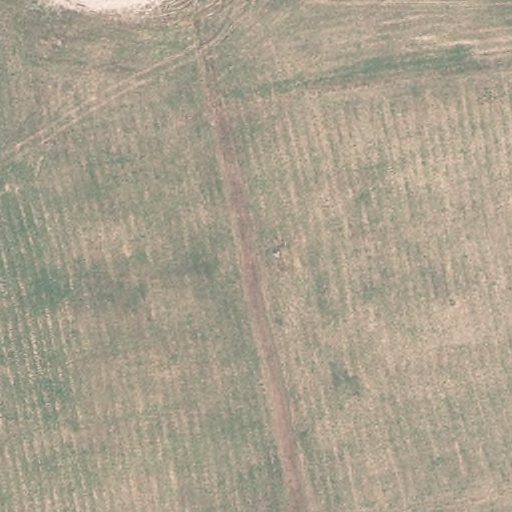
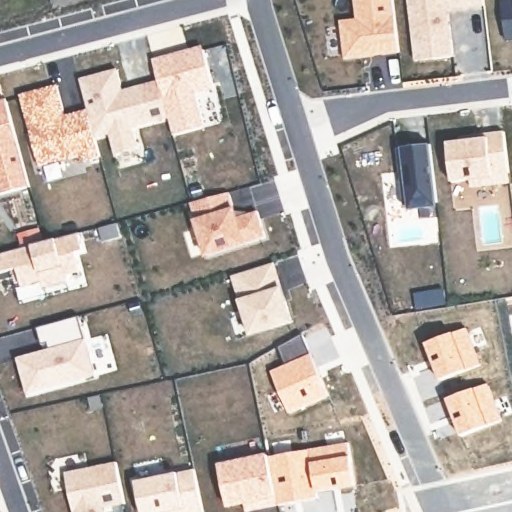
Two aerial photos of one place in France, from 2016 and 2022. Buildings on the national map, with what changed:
new [(353,18),(351,0),(390,0),(396,52),(380,54),(379,50),(371,51),(371,55),(342,58),(337,20),(353,18)]
new [(411,44),(406,0),(481,0),(481,3),(463,5),(445,7),(447,24),(450,54),(430,56),(412,59),(411,44)]
new [(503,37),(499,0),(512,0),(512,36),(503,37)]
new [(166,53),(167,57),(200,48),(210,86),(191,91),(201,126),(170,134),(165,116),(155,79),(150,58),(166,53)]
new [(119,89),(135,85),(155,79),(165,116),(129,126),(135,147),(111,153),(106,132),(91,136),(84,109),(76,78),(113,68),(119,89)]
new [(53,84),(62,119),(69,117),(67,113),(84,109),(91,136),(97,156),(80,160),(79,154),(36,166),(16,94),(53,84)]
new [(25,185),(0,192),(0,98),(2,97),(25,185)]
new [(468,137),(468,133),(501,129),(506,170),(490,172),(491,182),(468,184),(467,177),(449,179),(445,140),(468,137)]
new [(427,143),(435,206),(406,209),(406,204),(401,204),(394,147),(427,143)]
new [(226,191),(233,216),(254,211),(261,237),(201,253),(187,201),(226,191)]
new [(80,249),(71,251),(76,269),(61,273),(63,279),(39,286),(37,280),(17,285),(12,267),(0,270),(0,252),(75,232),(80,249)]
new [(270,261),(288,320),(248,333),(230,274),(270,261)]
new [(45,348),(44,342),(38,344),(33,327),(75,315),(91,374),(24,393),(14,357),(45,348)]
new [(241,502),(225,505),(216,464),(265,454),(275,503),(258,506),(243,510),(241,502)]
new [(121,503),(106,506),(105,500),(100,501),(102,512),(70,512),(62,472),(113,461),(121,503)]
new [(200,512),(139,512),(133,481),(191,469),(200,512)]

